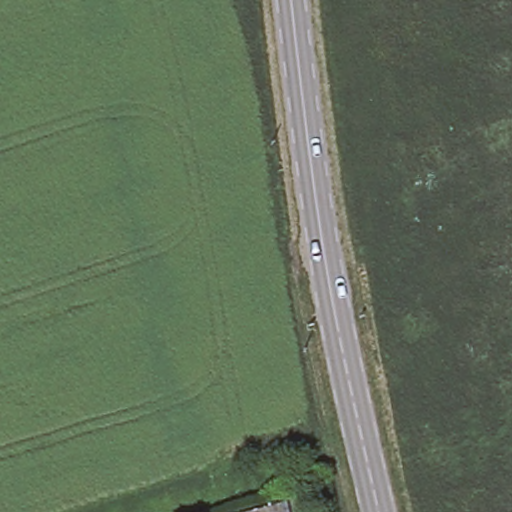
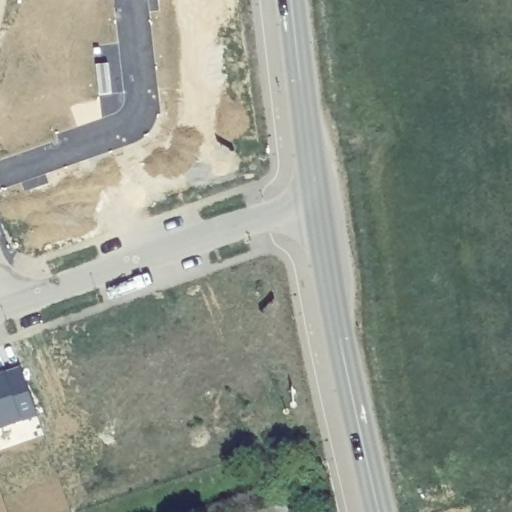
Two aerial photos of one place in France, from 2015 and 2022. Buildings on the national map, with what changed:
new [(35,414),(0,426),(0,375),(21,369),(35,414)]

